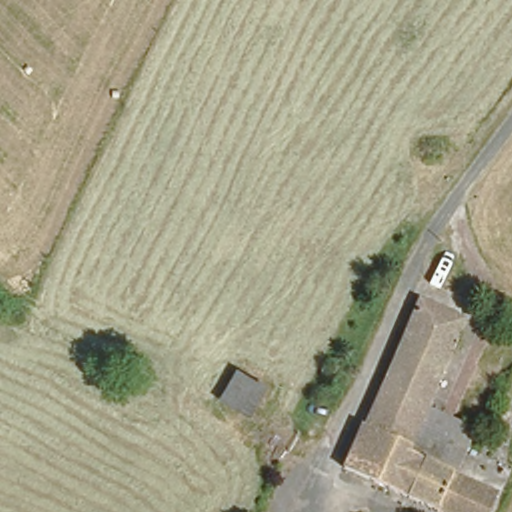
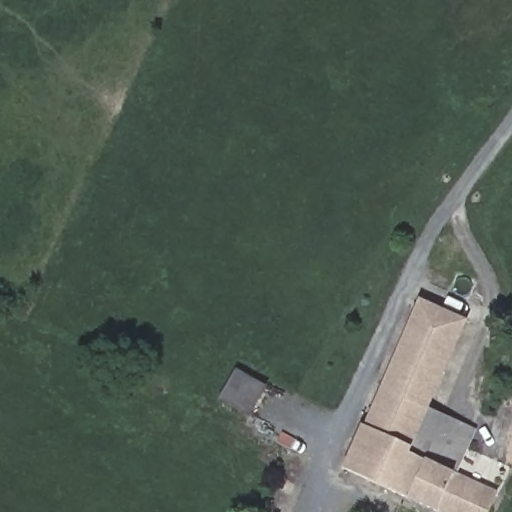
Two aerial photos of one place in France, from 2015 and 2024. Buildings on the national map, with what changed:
unchanged [(436,399),(385,374),(420,297),(462,317),(470,320),(436,399)]
unchanged [(266,386),(250,417),(217,399),(235,367),(266,386)]
unchanged [(385,374),(436,399),(432,408),(431,410),(418,441),(364,417),(385,374)]
unchanged [(431,410),(467,426),(453,457),(418,441),(431,410)]
unchanged [(341,462),(360,423),(362,421),(364,417),(418,441),(453,457),(458,459),(486,472),(482,481),(480,484),(497,492),(489,512),(445,512),(341,462)]

